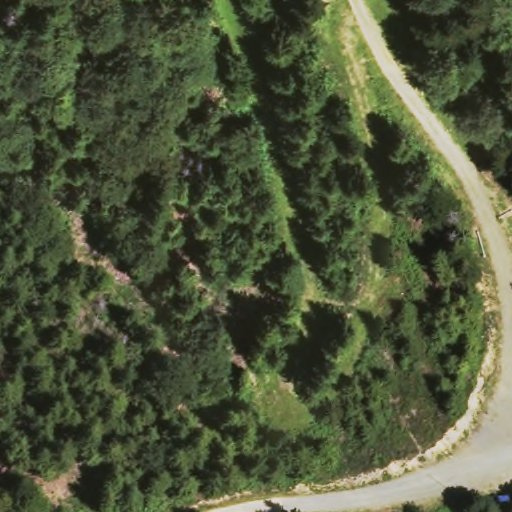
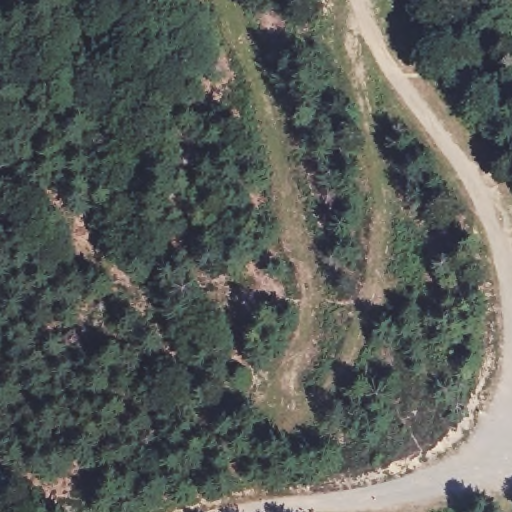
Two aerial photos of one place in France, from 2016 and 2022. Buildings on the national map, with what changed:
[]

